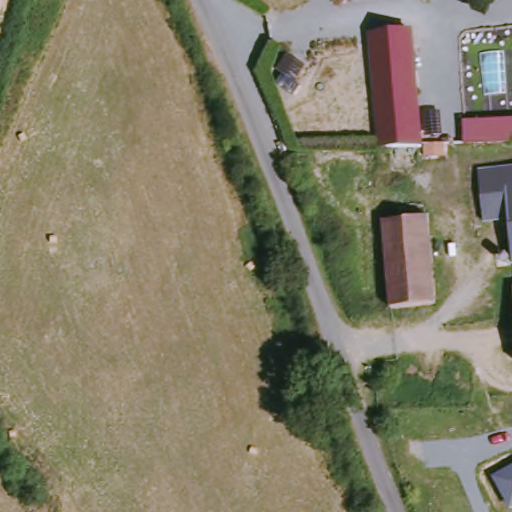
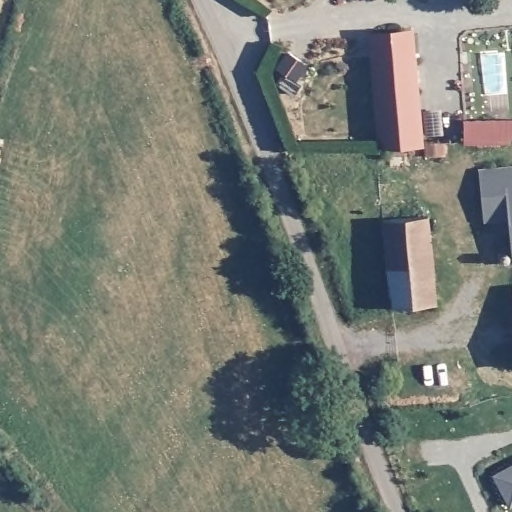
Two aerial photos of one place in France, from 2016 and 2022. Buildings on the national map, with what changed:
unchanged [(412,27),(423,142),(382,145),(370,32),(412,27)]
unchanged [(512,118),(512,141),(467,142),(466,119),(512,118)]
unchanged [(512,168),(512,220),(486,223),(481,172),(512,168)]
unchanged [(429,217),(438,306),(393,311),(384,222),(429,217)]
unchanged [(492,476),(512,464),(512,507),(510,508),(492,476)]

